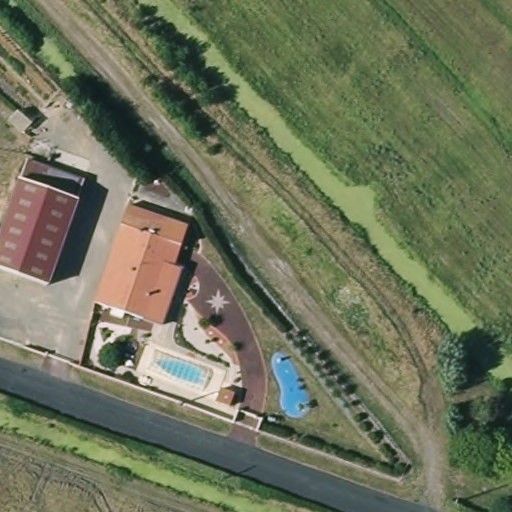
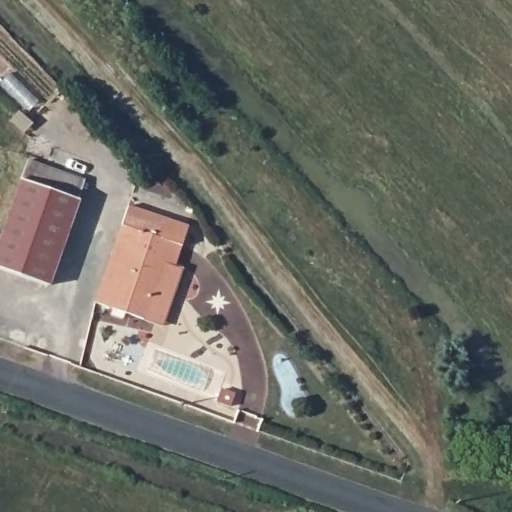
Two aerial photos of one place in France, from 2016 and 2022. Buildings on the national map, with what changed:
unchanged [(82,203),(52,288),(0,270),(0,244),(24,182),(82,203)]
unchanged [(125,210),(189,229),(156,325),(96,304),(125,210)]

